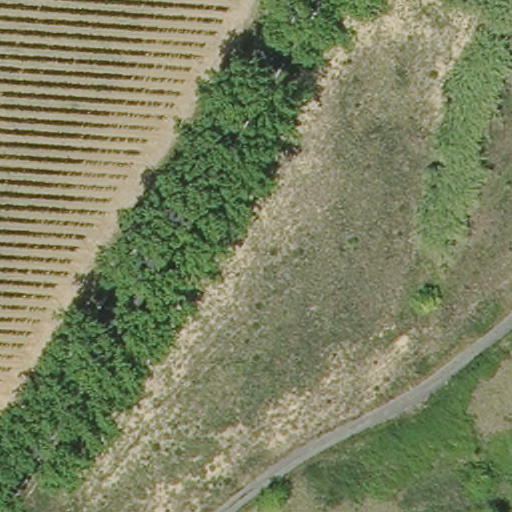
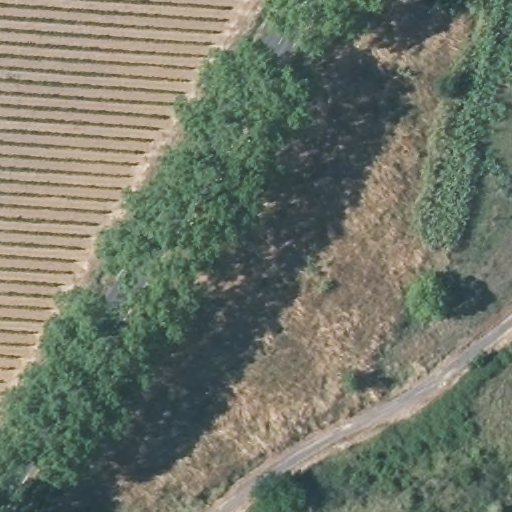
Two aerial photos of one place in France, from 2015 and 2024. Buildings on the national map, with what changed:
[]

